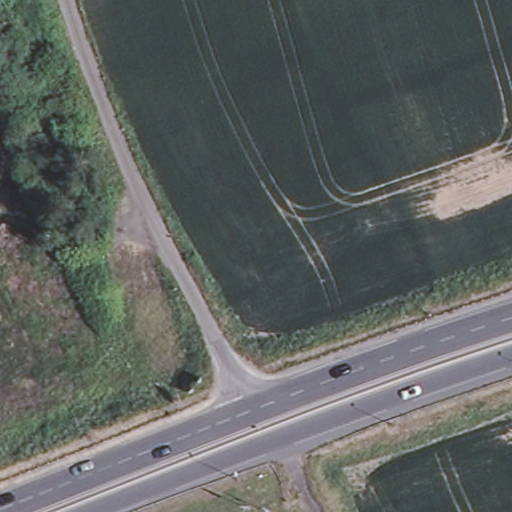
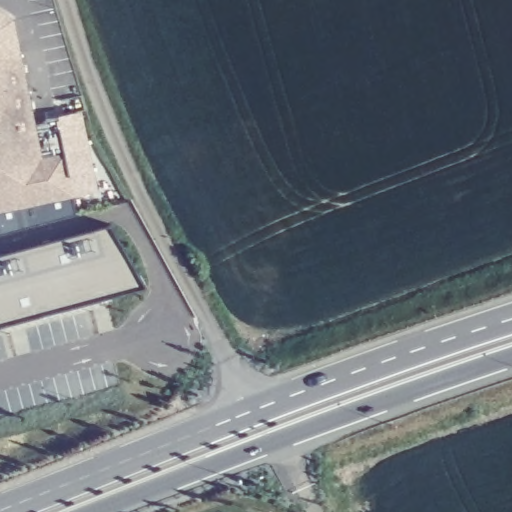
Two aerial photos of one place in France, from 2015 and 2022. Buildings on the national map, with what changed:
new [(15,17),(18,53),(0,57),(0,10),(15,17)]
new [(18,53),(33,125),(46,123),(45,119),(56,117),(72,195),(0,210),(0,57),(18,53)]
new [(110,223),(128,292),(0,326),(0,253),(110,223)]

